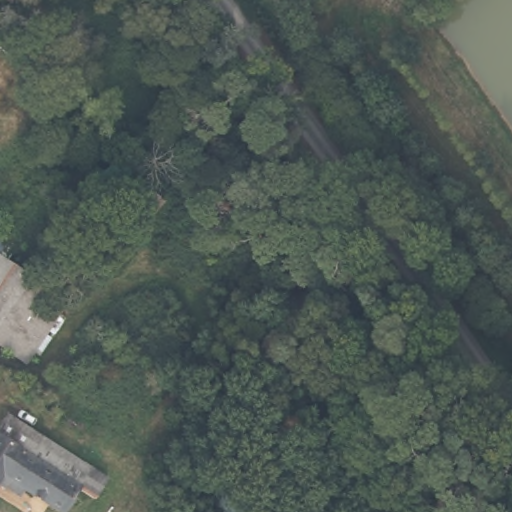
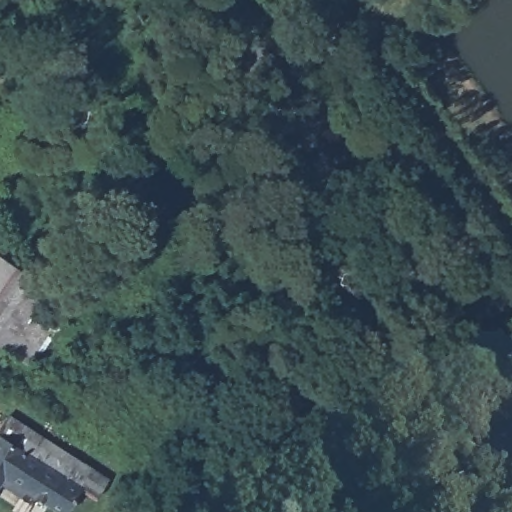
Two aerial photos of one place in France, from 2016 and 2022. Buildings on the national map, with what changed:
unchanged [(163,201),(101,283),(80,268),(141,186),(163,201)]
unchanged [(5,245),(0,252),(0,241),(5,245)]
unchanged [(33,355),(27,351),(19,362),(0,349),(0,261),(60,302),(52,314),(59,318),(33,355)]
unchanged [(93,499),(76,488),(61,512),(2,475),(0,478),(0,426),(6,417),(34,435),(73,459),(106,480),(93,499)]

